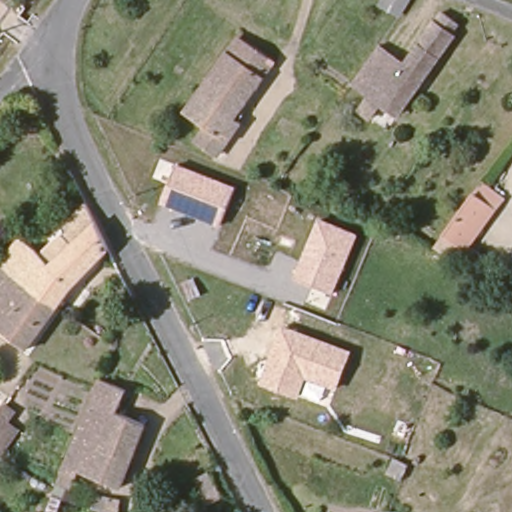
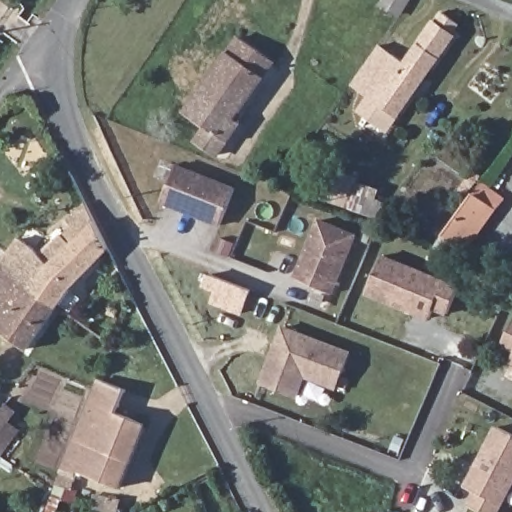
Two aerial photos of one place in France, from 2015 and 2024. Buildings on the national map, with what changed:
unchanged [(407,72),(445,19),(460,29),(455,36),(460,41),(398,118),(376,102),(401,67),(407,72)]
unchanged [(270,63),(231,116),(237,121),(215,151),(198,140),(206,125),(185,109),(239,35),(270,63)]
unchanged [(401,67),(376,102),(355,87),(380,52),(401,67)]
unchanged [(220,226),(161,204),(176,164),(236,187),(220,226)]
new [(373,214),(325,202),(331,175),(380,188),(373,214)]
unchanged [(492,209),(466,248),(443,234),(470,195),(492,209)]
unchanged [(0,228),(9,216),(40,237),(31,249),(54,264),(75,238),(65,230),(74,219),(85,204),(90,216),(104,243),(55,307),(0,265),(0,252),(11,236),(0,228)]
unchanged [(334,296),(293,280),(318,218),(358,234),(334,296)]
new [(455,287),(443,313),(429,307),(425,318),(362,292),(377,255),(455,287)]
unchanged [(55,307),(26,345),(0,328),(0,265),(55,307)]
unchanged [(195,277),(202,287),(192,294),(185,283),(195,277)]
new [(512,352),(500,346),(510,321),(512,321),(512,352)]
unchanged [(337,390),(307,380),(298,400),(260,385),(281,327),(352,351),(337,390)]
new [(512,356),(512,364),(509,363),(512,356)]
unchanged [(129,389),(121,410),(145,422),(119,485),(80,468),(76,476),(65,472),(103,379),(129,389)]
unchanged [(11,405),(25,430),(0,456),(0,418),(11,405)]
new [(512,478),(496,512),(478,512),(467,507),(474,493),(463,488),(491,428),(512,437),(512,478)]
unchanged [(63,483),(84,488),(81,499),(59,494),(63,483)]

